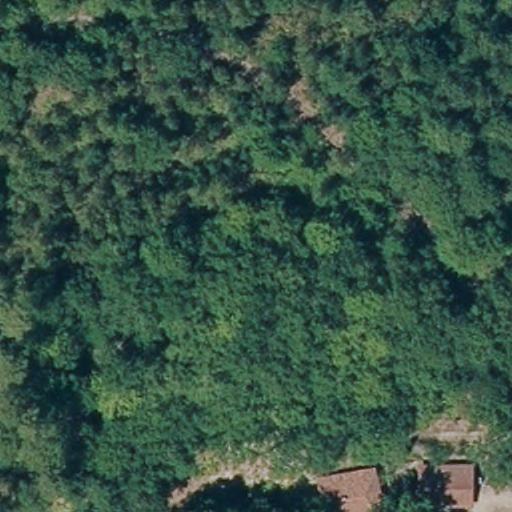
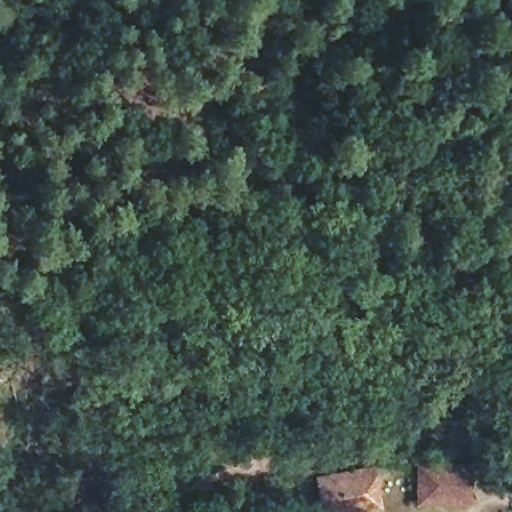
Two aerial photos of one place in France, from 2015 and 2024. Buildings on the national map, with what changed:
unchanged [(464,508),(409,506),(409,464),(464,467),(464,508)]
unchanged [(368,469),(367,512),(312,512),(312,471),(322,469),(368,469)]

